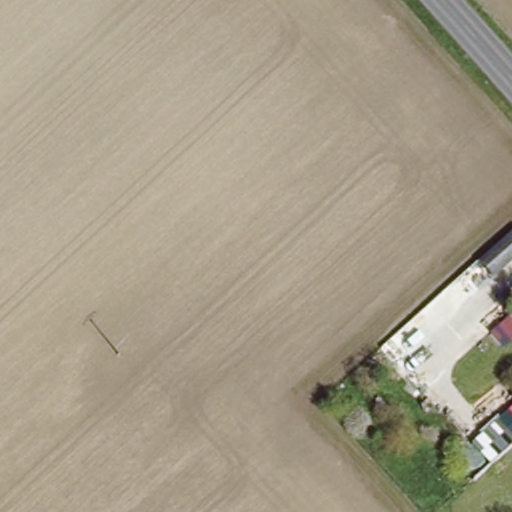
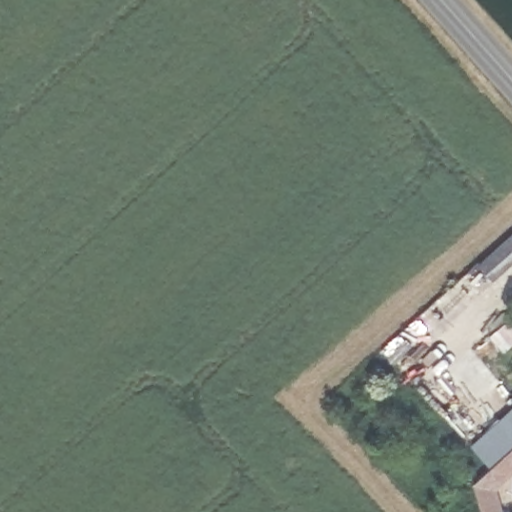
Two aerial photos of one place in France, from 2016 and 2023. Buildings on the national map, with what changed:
unchanged [(492,254),(512,236),(512,260),(492,280),(478,266),(492,254)]
new [(511,398),(512,398),(512,400),(511,398)]
new [(475,480),(491,464),(471,443),(512,407),(512,473),(496,488),(502,512),(483,512),(475,480)]
demolished [(472,486),(491,469),(512,450),(512,473),(483,498),(480,495),(472,486)]

